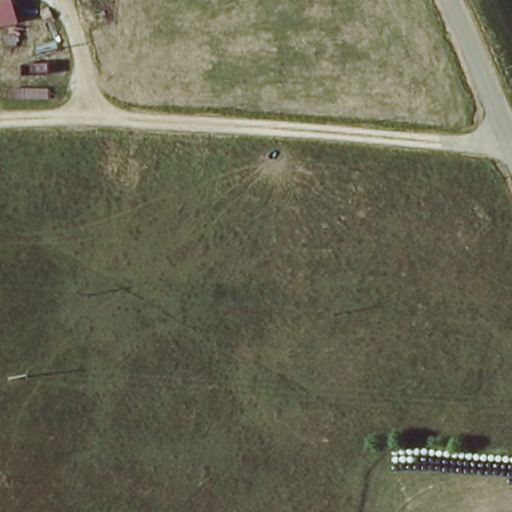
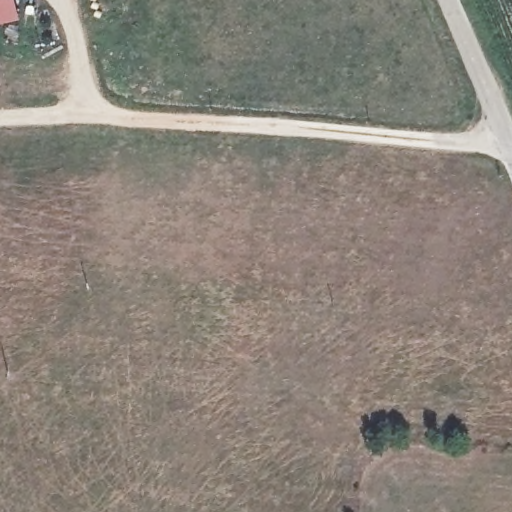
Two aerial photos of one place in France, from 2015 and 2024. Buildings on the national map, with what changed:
unchanged [(22,21),(0,26),(0,0),(18,0),(22,21)]

